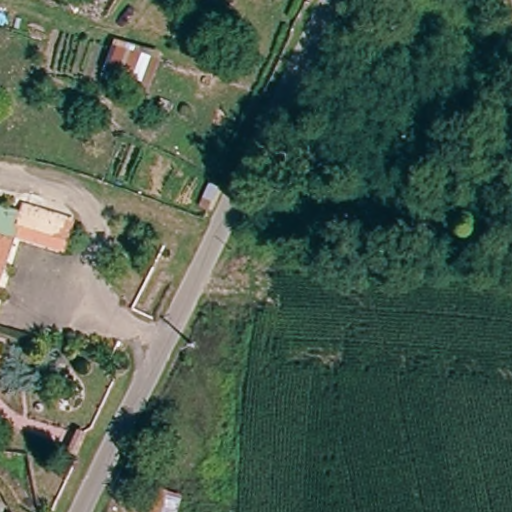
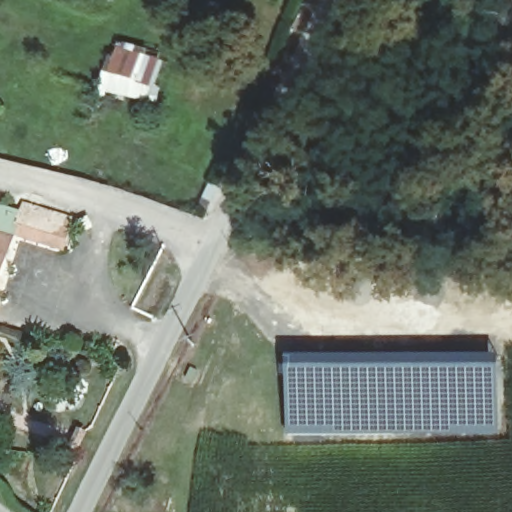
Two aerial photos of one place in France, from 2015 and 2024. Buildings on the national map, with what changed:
unchanged [(51,0),(104,0),(100,15),(51,0)]
new [(116,41),(163,58),(147,101),(97,88),(116,41)]
unchanged [(25,208),(29,195),(83,213),(71,249),(18,230),(25,208)]
unchanged [(15,237),(0,232),(0,200),(25,208),(18,230),(15,237)]
unchanged [(15,237),(0,285),(0,232),(15,237)]
new [(287,360),(294,360),(311,363),(427,363),(427,359),(459,360),(459,356),(500,356),(501,435),(287,439),(287,360)]

